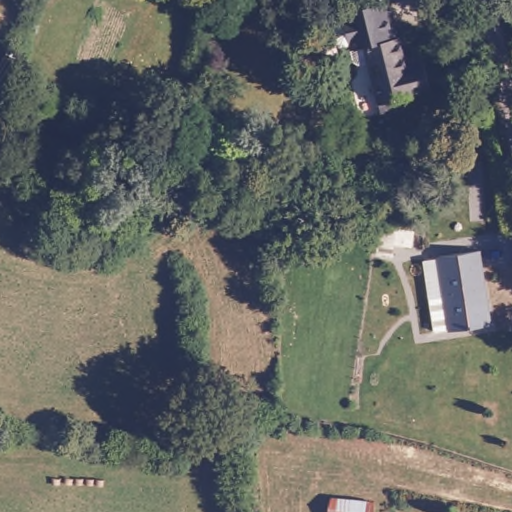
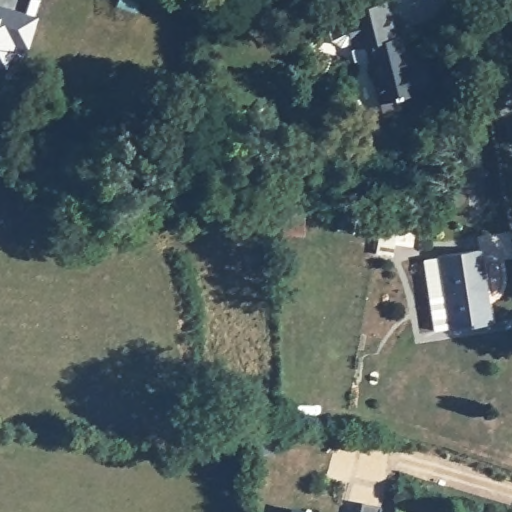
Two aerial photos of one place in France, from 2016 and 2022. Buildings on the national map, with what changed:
unchanged [(390,29),(396,27),(404,56),(422,51),(432,77),(414,82),(415,87),(381,97),(364,45),(357,45),(356,39),(342,35),(335,29),(337,17),(345,12),(345,7),(368,0),(382,0),(390,29)]
new [(29,52),(10,47),(4,71),(0,69),(0,5),(40,17),(29,52)]
unchanged [(438,251),(476,241),(493,315),(453,323),(453,321),(438,324),(431,292),(446,290),(438,251)]
unchanged [(378,507),(377,512),(357,512),(358,503),(378,507)]
unchanged [(300,512),(288,512),(289,510),(300,512)]

